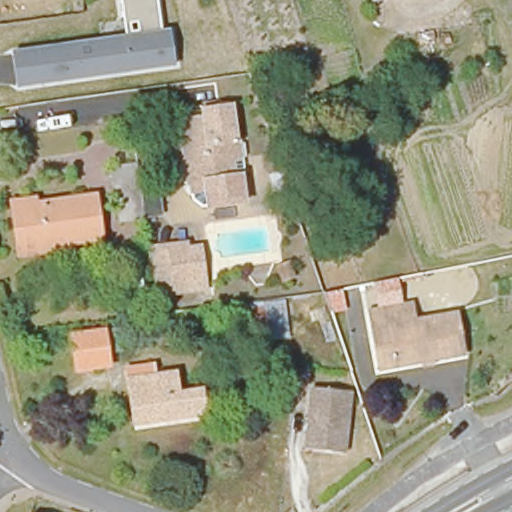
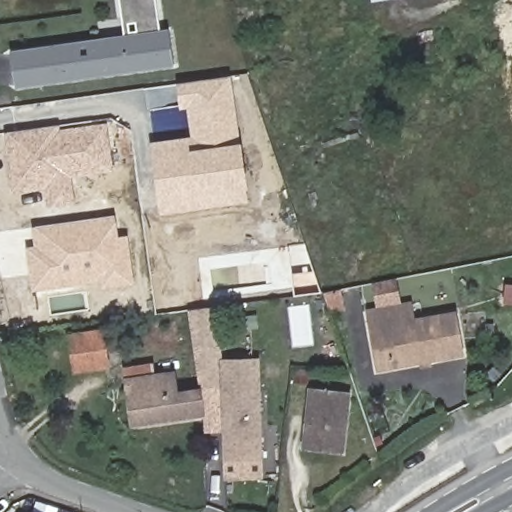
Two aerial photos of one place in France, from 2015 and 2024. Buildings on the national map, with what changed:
unchanged [(170,29),(176,66),(16,88),(12,50),(126,35),(121,0),(158,0),(162,30),(170,29)]
new [(150,143),(191,137),(187,109),(180,110),(177,84),(232,76),(243,142),(250,189),(248,189),(250,202),(161,214),(150,143)]
demolished [(177,117),(197,113),(197,106),(228,101),(234,139),(224,140),(226,154),(227,157),(229,174),(230,174),(236,173),(238,196),(199,202),(182,197),(181,180),(190,178),(185,138),(180,139),(177,117)]
new [(45,189),(14,193),(6,133),(61,125),(61,129),(107,122),(114,169),(72,177),(76,203),(49,207),(45,189)]
demolished [(119,182),(120,182),(145,179),(172,175),(177,206),(149,210),(124,213),(119,182)]
demolished [(29,205),(94,195),(100,238),(35,248),(29,205)]
new [(115,215),(119,237),(128,235),(136,284),(101,290),(100,283),(32,291),(27,247),(35,246),(32,227),(115,215)]
demolished [(163,242),(190,239),(192,246),(202,243),(210,294),(170,299),(162,245),(163,242)]
demolished [(258,300),(262,333),(247,335),(244,302),(258,300)]
unchanged [(375,328),(372,312),(411,303),(415,321),(457,313),(464,351),(394,365),(382,367),(375,328)]
new [(215,306),(222,359),(224,432),(205,432),(203,418),(199,395),(189,310),(215,306)]
unchanged [(72,378),(67,343),(100,338),(101,342),(116,339),(119,361),(104,363),(105,374),(72,378)]
new [(264,462),(225,463),(222,359),(262,357),(264,462)]
unchanged [(128,374),(155,369),(157,380),(172,377),(177,399),(199,395),(203,418),(137,429),(128,374)]
unchanged [(348,388),(342,449),(303,445),(309,384),(348,388)]

